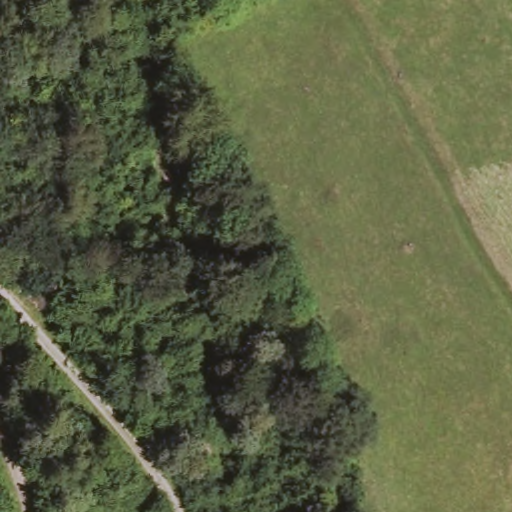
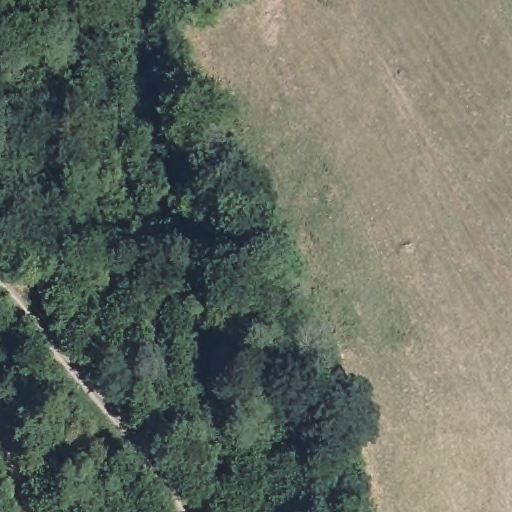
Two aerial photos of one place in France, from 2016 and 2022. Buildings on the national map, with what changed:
[]

